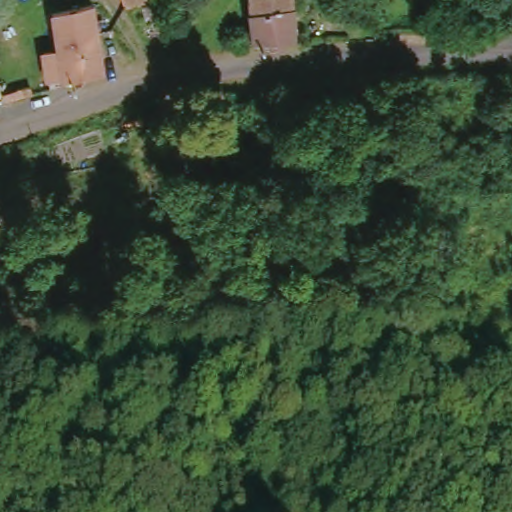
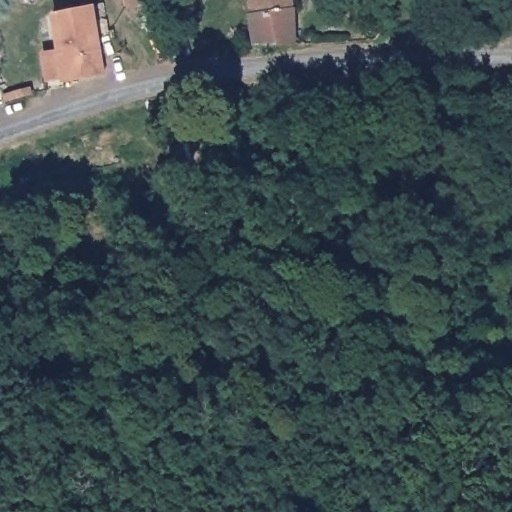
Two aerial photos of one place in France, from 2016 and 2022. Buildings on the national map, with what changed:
unchanged [(155,2),(125,9),(123,0),(155,0),(155,2)]
unchanged [(287,44),(268,44),(248,42),(243,11),(243,0),(286,0),(287,44)]
unchanged [(43,54),(57,50),(49,14),(89,5),(103,70),(64,80),(49,83),(43,54)]

